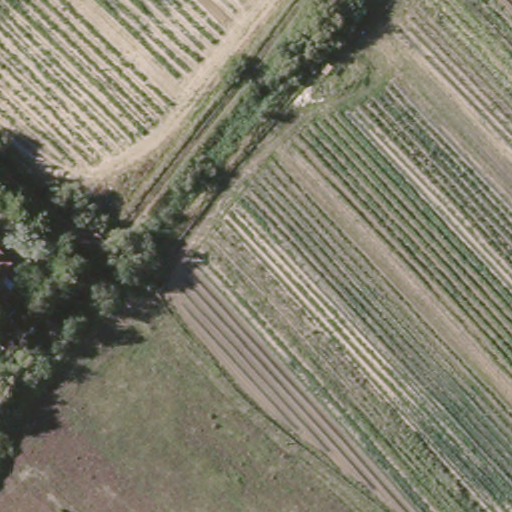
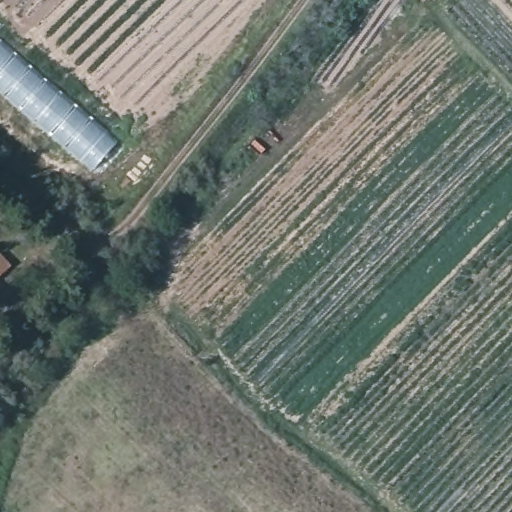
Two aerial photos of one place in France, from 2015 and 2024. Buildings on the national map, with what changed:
new [(118,141),(92,171),(0,92),(0,40),(25,60),(118,141)]
unchanged [(0,277),(0,265),(7,272),(0,277)]

